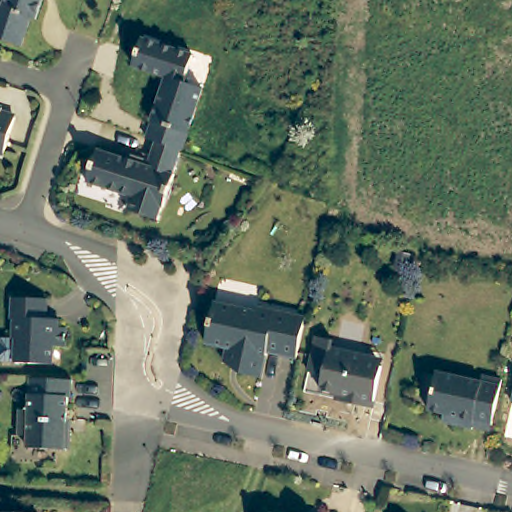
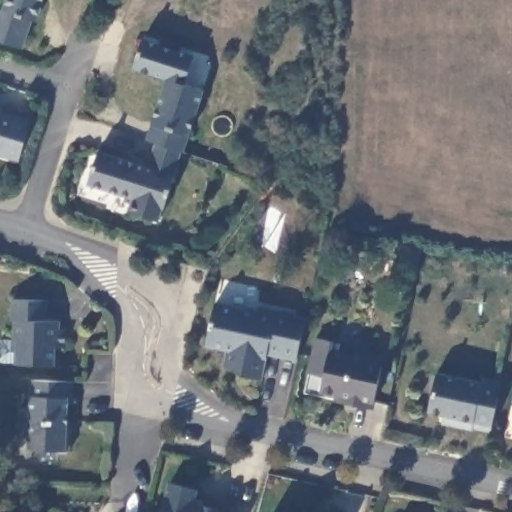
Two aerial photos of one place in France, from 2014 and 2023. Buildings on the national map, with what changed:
unchanged [(10,0),(44,0),(36,22),(31,21),(22,48),(0,41),(0,13),(1,10),(5,11),(10,0)]
unchanged [(157,145),(149,142),(170,83),(135,72),(145,44),(195,60),(185,88),(203,94),(182,153),(157,145)]
unchanged [(4,107),(20,112),(7,148),(0,146),(0,102),(5,103),(4,107)]
unchanged [(165,211),(163,211),(159,222),(129,213),(133,200),(88,185),(99,152),(129,162),(130,158),(150,165),(157,145),(182,153),(184,154),(165,211)]
unchanged [(19,364),(5,364),(1,360),(2,344),(6,341),(17,341),(19,320),(15,320),(16,300),(51,302),(50,323),(62,324),(62,332),(68,332),(67,350),(56,350),(55,367),(19,366),(19,364)]
unchanged [(231,354),(210,349),(219,309),(259,317),(260,312),(310,323),(301,365),(270,358),(265,383),(246,379),(228,368),(231,354)]
unchanged [(335,403),(337,399),(320,396),(322,381),(308,378),(315,342),(330,345),(328,354),(363,361),(381,365),(380,371),(372,406),(371,411),(335,403)]
unchanged [(471,431),(470,434),(440,427),(441,419),(426,416),(435,377),(480,387),(482,382),(500,385),(490,430),(489,435),(471,431)]
unchanged [(77,401),(74,401),(73,435),(75,436),(75,452),(34,451),(34,437),(24,437),(24,411),(34,411),(34,381),(77,383),(77,401)]
new [(199,487),(195,500),(237,512),(159,512),(168,479),(199,487)]

